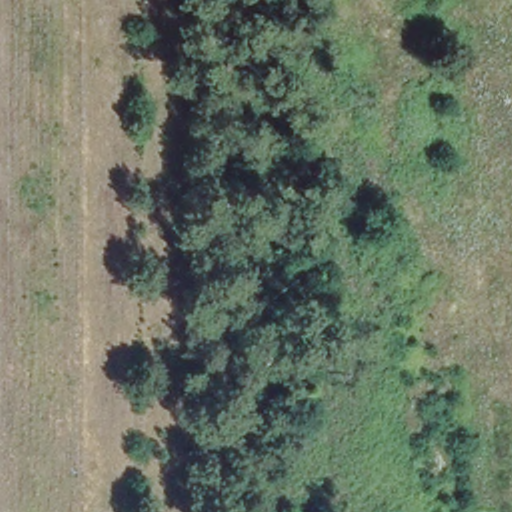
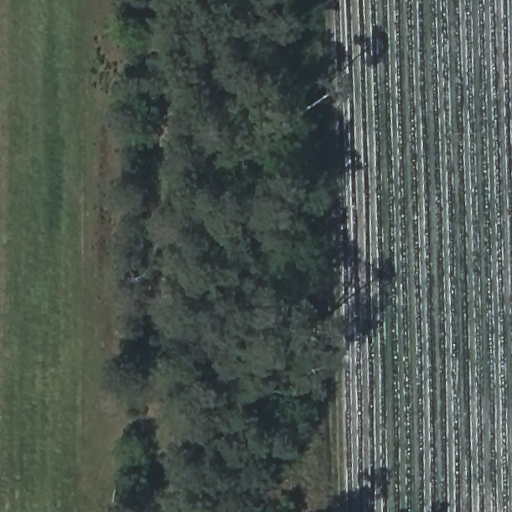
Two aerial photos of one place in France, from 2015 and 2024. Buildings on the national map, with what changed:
[]

